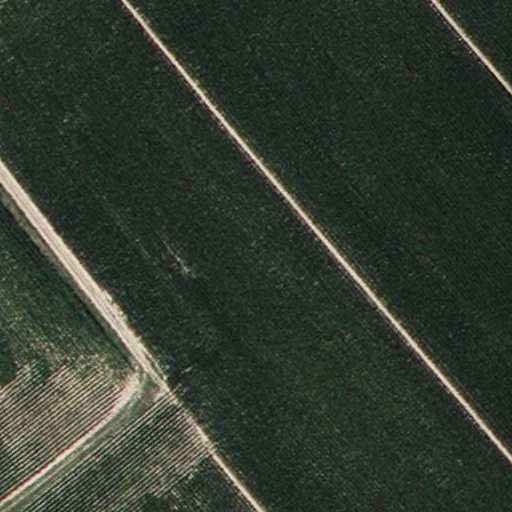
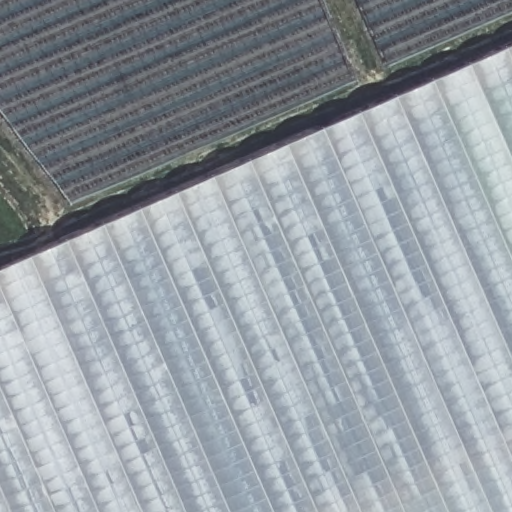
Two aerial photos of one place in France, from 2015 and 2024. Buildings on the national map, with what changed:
new [(64,206),(0,119),(0,0),(317,0),(353,82),(64,206)]
new [(382,69),(352,0),(512,0),(512,13),(382,69)]
new [(0,512),(0,268),(512,44),(512,512),(0,512)]

